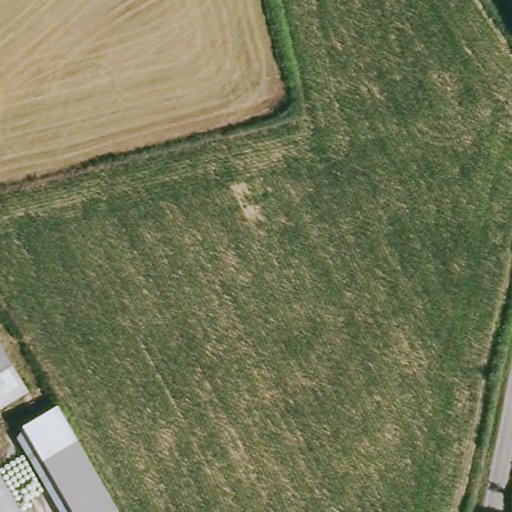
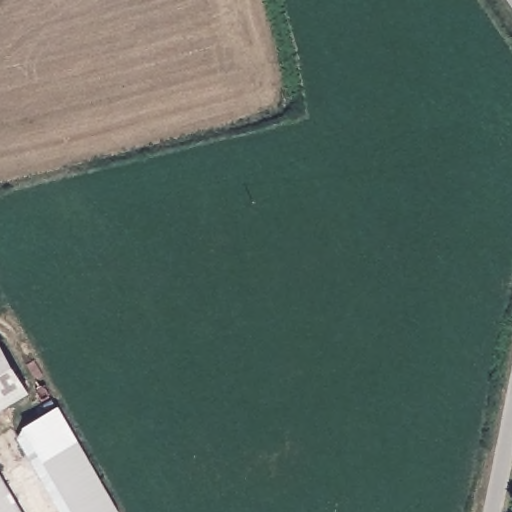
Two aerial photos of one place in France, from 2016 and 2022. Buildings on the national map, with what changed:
unchanged [(32,394),(0,414),(0,347),(32,394)]
unchanged [(65,404),(119,502),(123,512),(69,512),(20,432),(65,404)]
unchanged [(25,512),(0,512),(0,473),(25,512)]

